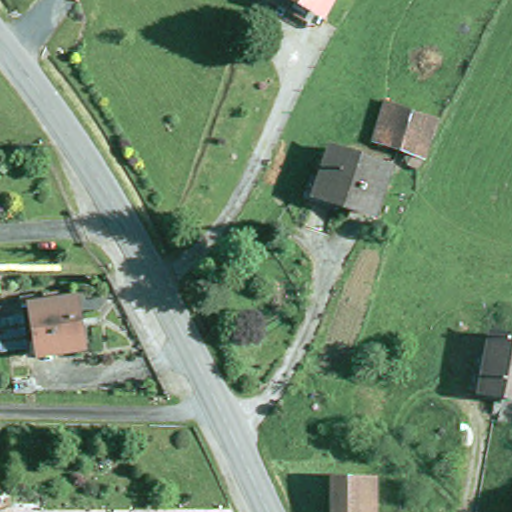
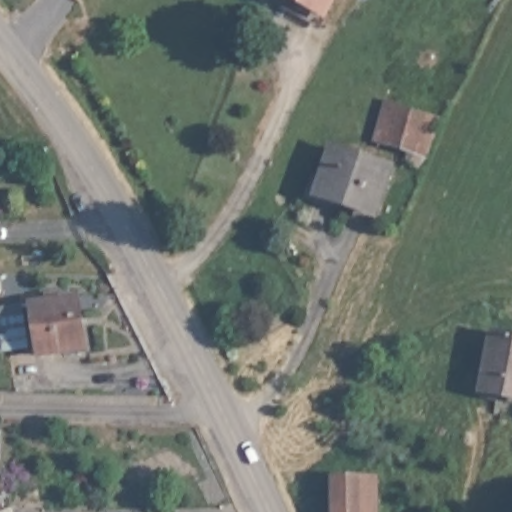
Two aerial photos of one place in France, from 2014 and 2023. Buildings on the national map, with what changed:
unchanged [(277,0),(330,0),(325,9),(318,22),(300,12),(277,0)]
unchanged [(405,135),(413,116),(435,126),(418,159),(385,143),(392,130),(405,135)]
unchanged [(392,172),(377,218),(315,198),(330,152),(392,172)]
unchanged [(88,353),(45,360),(38,311),(32,312),(32,305),(66,301),(67,308),(82,306),(88,353)]
unchanged [(494,332),(512,336),(512,396),(488,392),(483,391),(490,353),(494,332)]
unchanged [(363,481),(370,481),(372,512),(328,512),(328,482),(363,481)]
unchanged [(3,499),(3,512),(0,512),(0,499),(3,499)]

